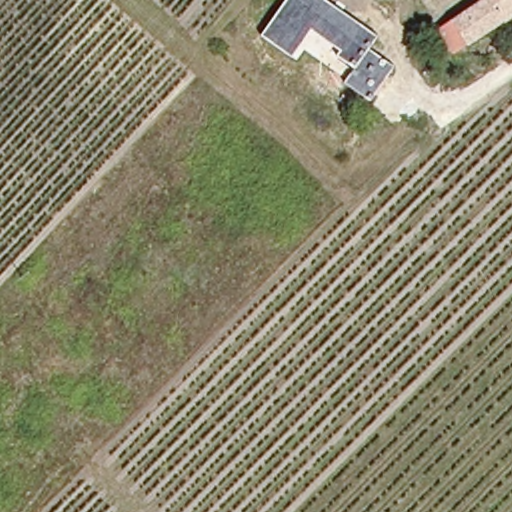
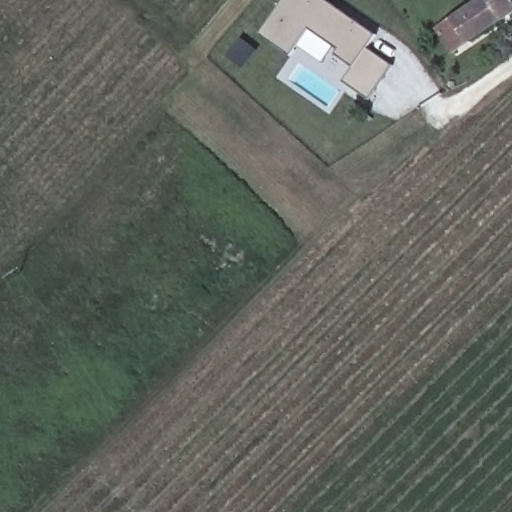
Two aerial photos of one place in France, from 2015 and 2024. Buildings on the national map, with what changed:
unchanged [(369,99),(343,81),(354,66),(336,53),(339,48),(310,29),(291,56),(261,34),(284,0),(326,0),(379,38),(369,49),(393,67),(369,99)]
unchanged [(464,42),(448,18),(476,0),(512,0),(512,11),(464,42)]

